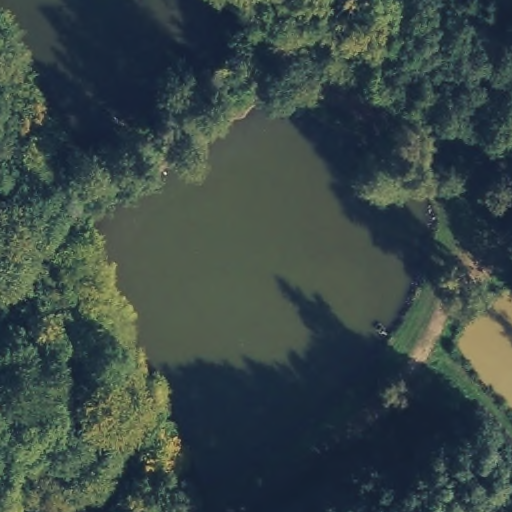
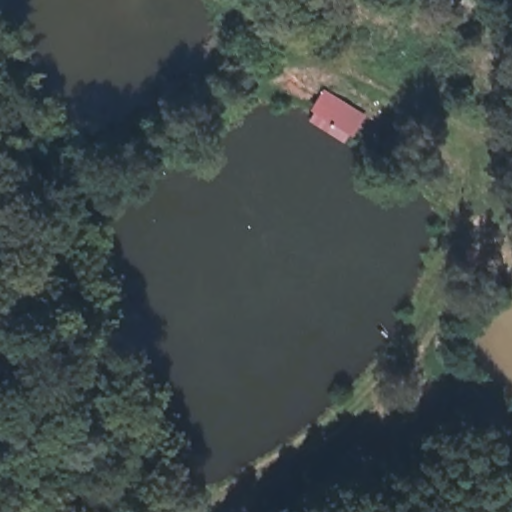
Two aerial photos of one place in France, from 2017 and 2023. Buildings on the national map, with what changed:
new [(365,115),(352,135),(310,111),(323,90),(365,115)]

